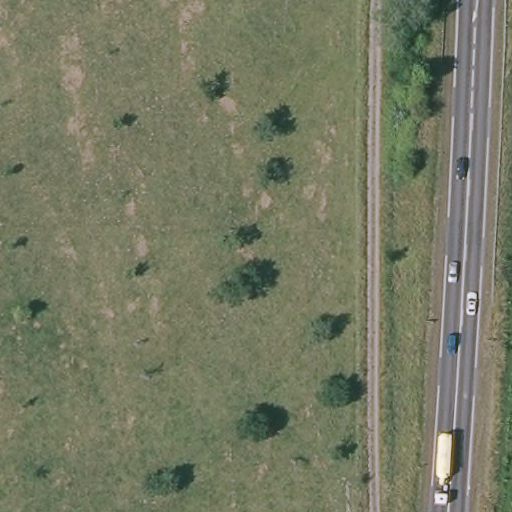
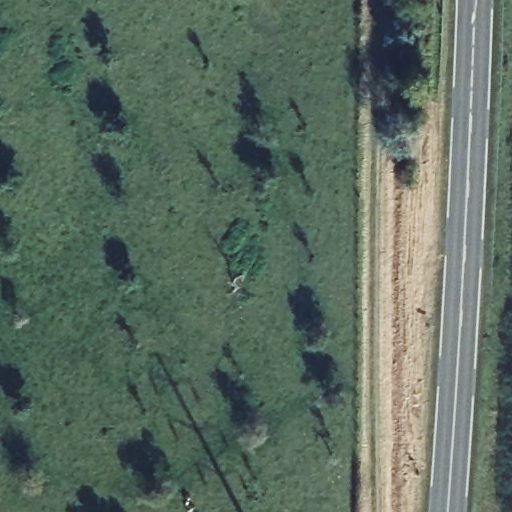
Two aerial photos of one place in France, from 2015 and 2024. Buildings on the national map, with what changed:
[]

